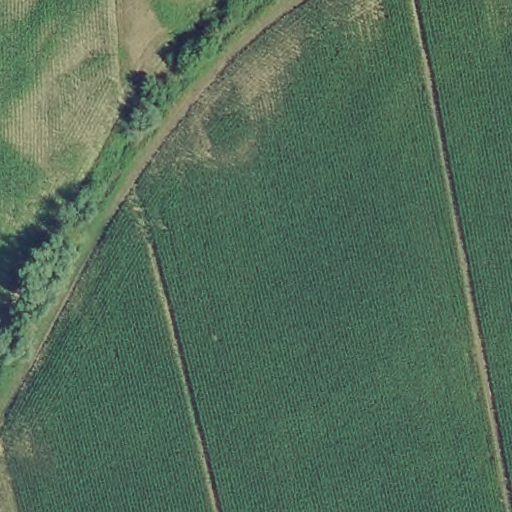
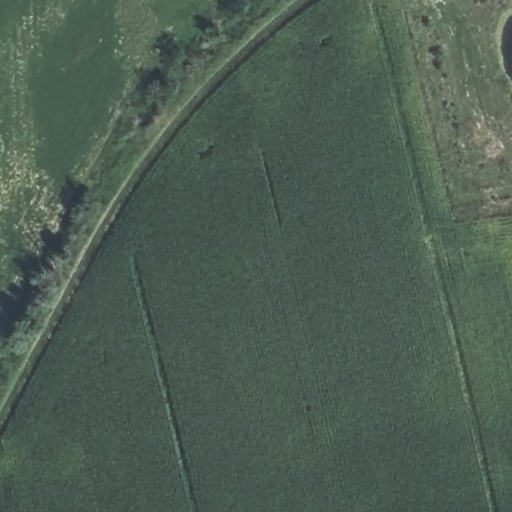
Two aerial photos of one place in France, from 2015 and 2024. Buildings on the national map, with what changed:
[]

